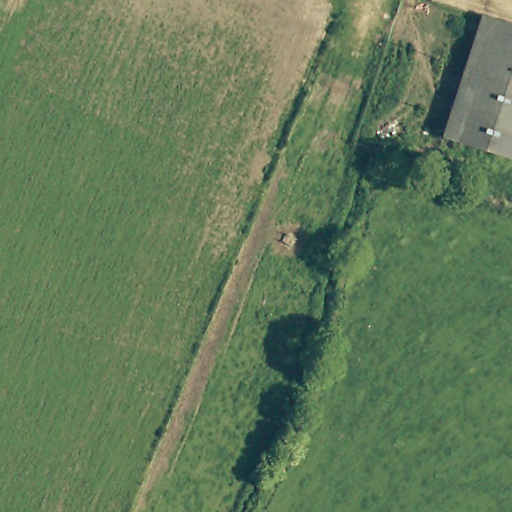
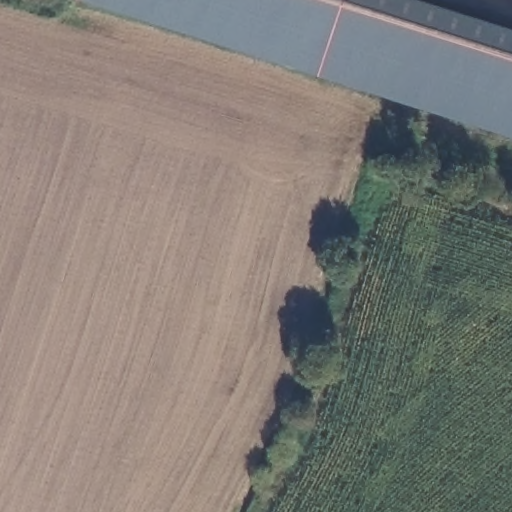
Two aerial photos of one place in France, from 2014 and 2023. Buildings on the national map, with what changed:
new [(78,0),(412,0),(512,32),(512,139),(78,0)]
demolished [(512,26),(512,155),(443,133),(479,16),(512,26)]

